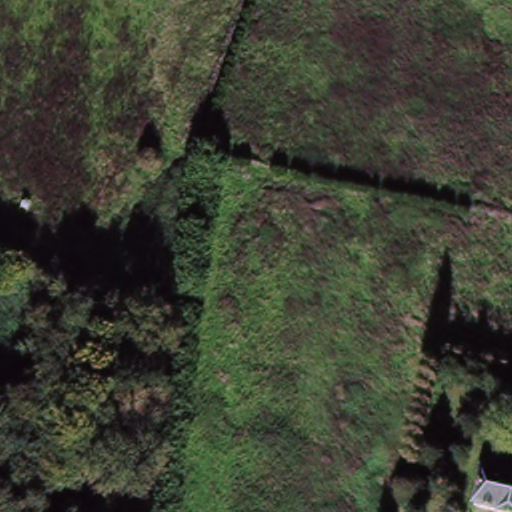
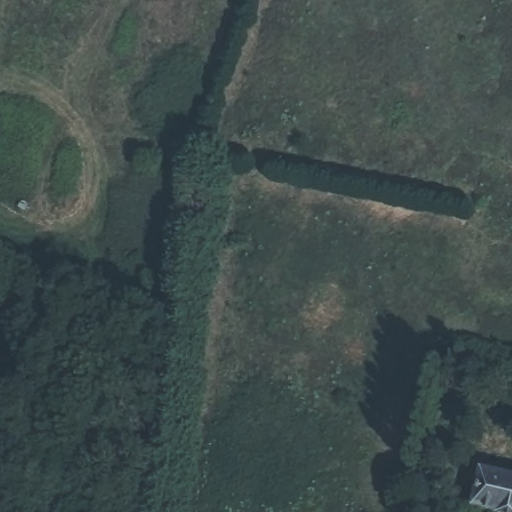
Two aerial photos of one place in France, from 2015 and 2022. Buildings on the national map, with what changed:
unchanged [(512,477),(512,512),(479,512),(473,511),(481,468),(512,477)]

